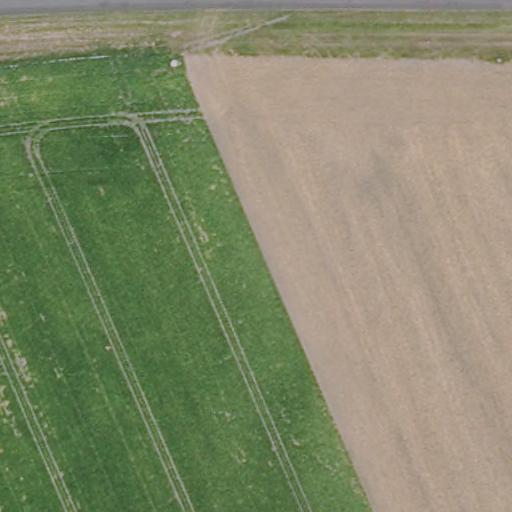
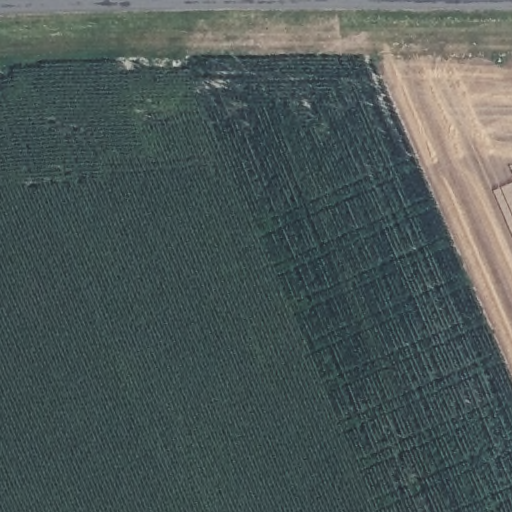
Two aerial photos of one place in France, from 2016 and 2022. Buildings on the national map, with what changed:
[]

